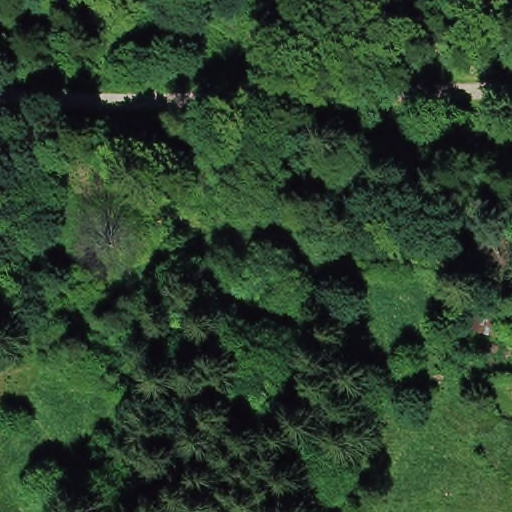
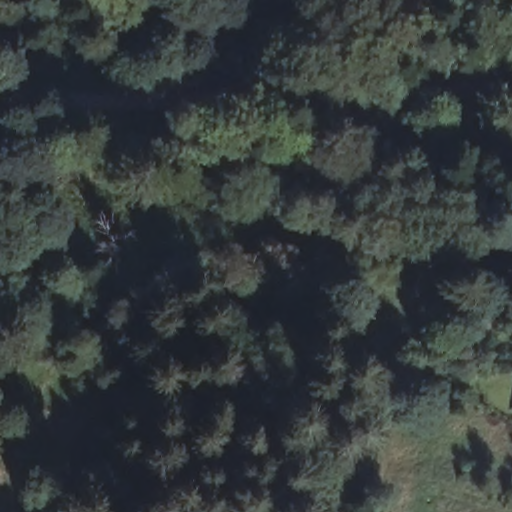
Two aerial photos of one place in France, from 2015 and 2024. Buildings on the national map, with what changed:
unchanged [(483,330),(478,350),(453,345),(457,324),(483,330)]

